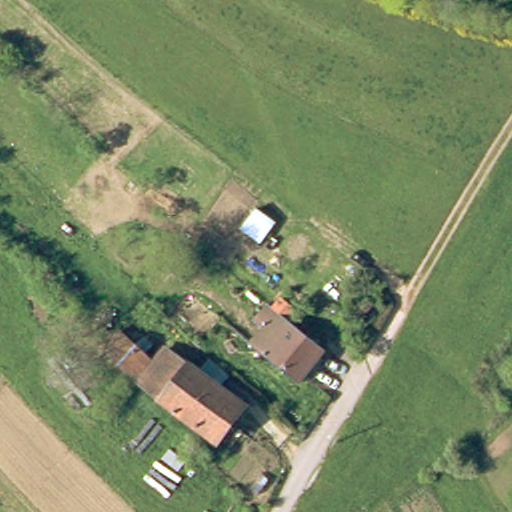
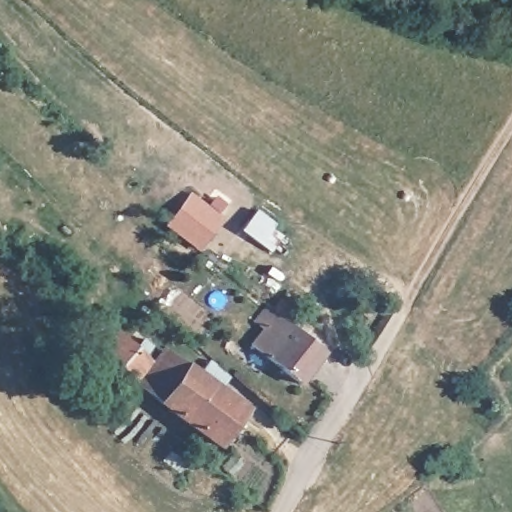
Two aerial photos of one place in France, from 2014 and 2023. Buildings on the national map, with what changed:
new [(194,195),(222,216),(197,248),(170,226),(194,195)]
unchanged [(251,341),(280,312),(312,338),(295,353),(277,336),(262,351),(251,341)]
unchanged [(277,336),(295,353),(312,338),(341,363),(311,394),(262,351),(277,336)]
unchanged [(137,350),(140,348),(162,365),(145,385),(102,359),(123,339),(137,350)]
unchanged [(145,385),(162,365),(172,354),(247,412),(217,447),(205,435),(200,440),(190,432),(195,428),(145,385)]

